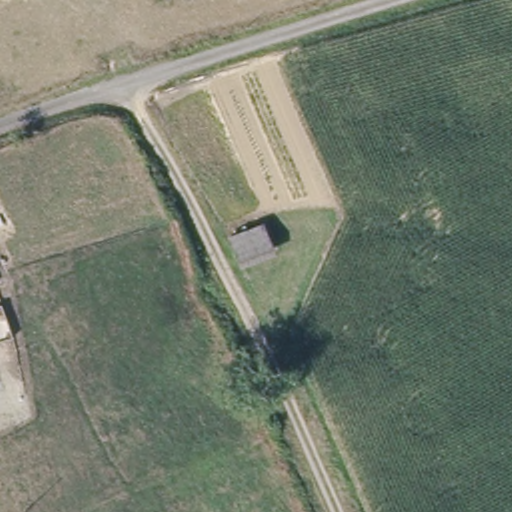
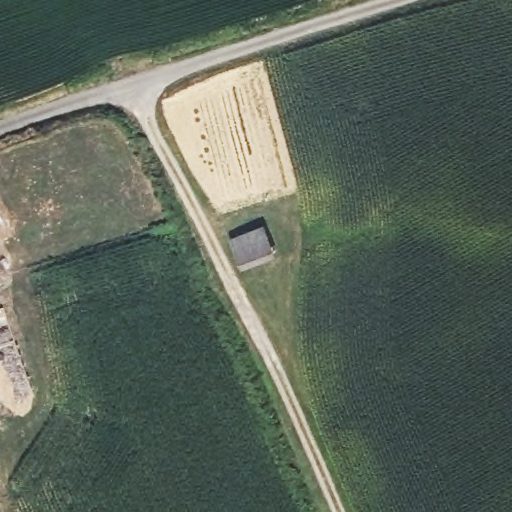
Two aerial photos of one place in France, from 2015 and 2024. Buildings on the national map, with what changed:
unchanged [(283,259),(244,274),(229,239),(266,222),(283,259)]

